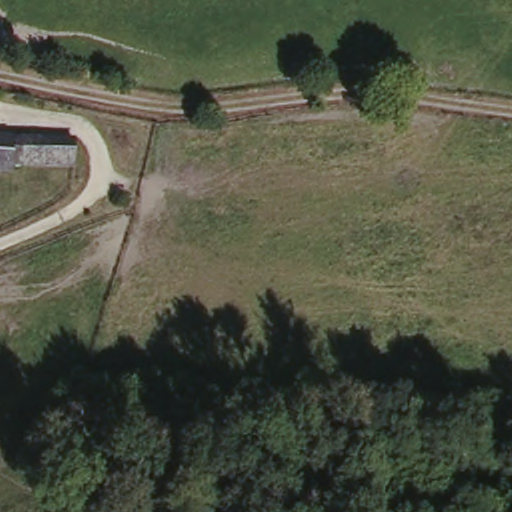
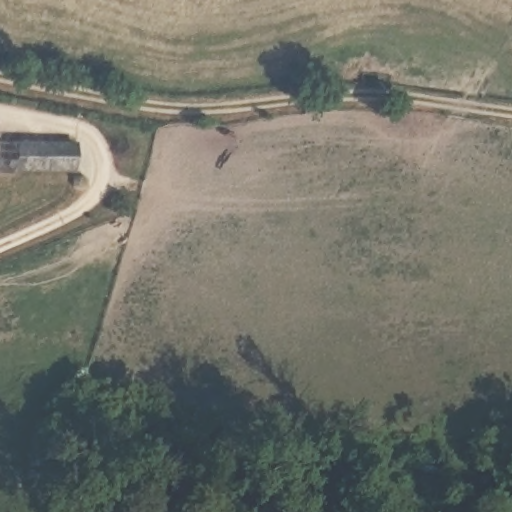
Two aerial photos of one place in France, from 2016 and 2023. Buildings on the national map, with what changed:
unchanged [(81,131),(82,161),(39,164),(37,134),(81,131)]
unchanged [(30,165),(29,175),(0,176),(0,136),(37,134),(39,164),(30,165)]

